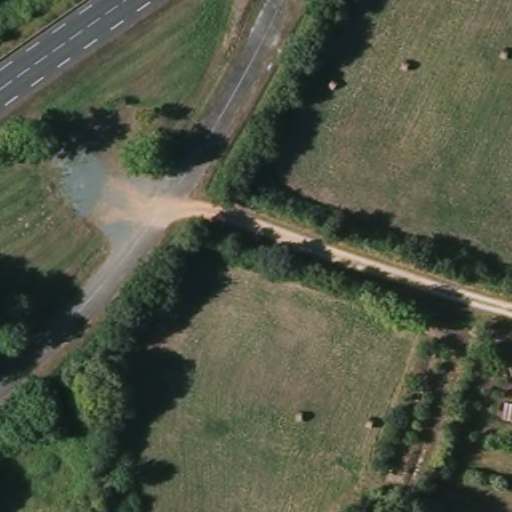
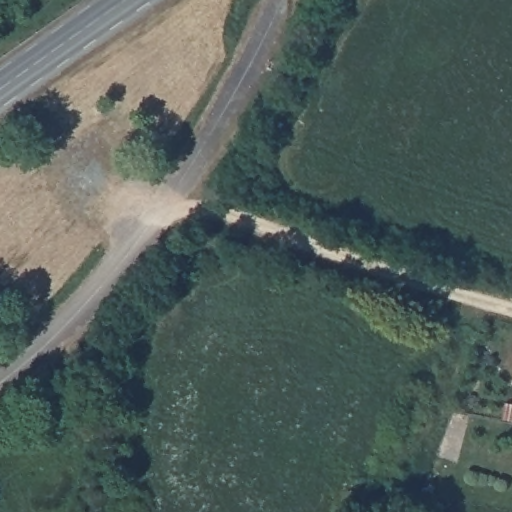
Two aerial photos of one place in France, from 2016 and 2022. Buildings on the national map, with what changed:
unchanged [(512,411),(512,421),(510,421),(512,411)]

